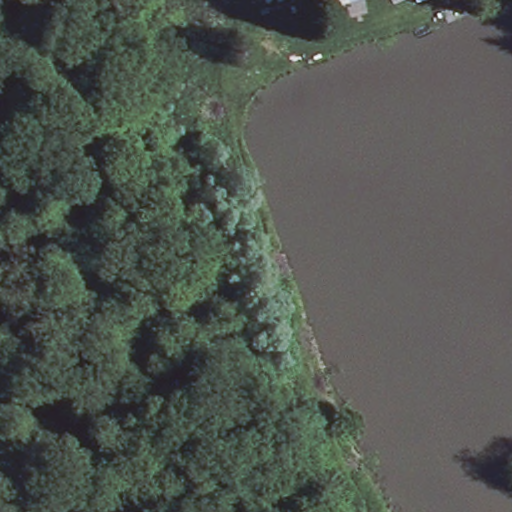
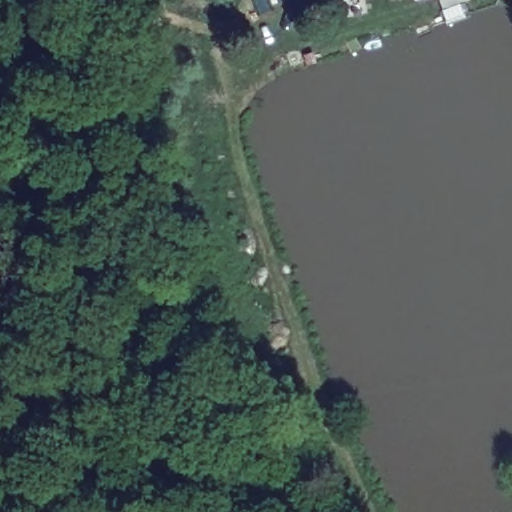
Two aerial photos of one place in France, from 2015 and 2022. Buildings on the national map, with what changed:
unchanged [(315,0),(355,0),(317,7),(315,0)]

